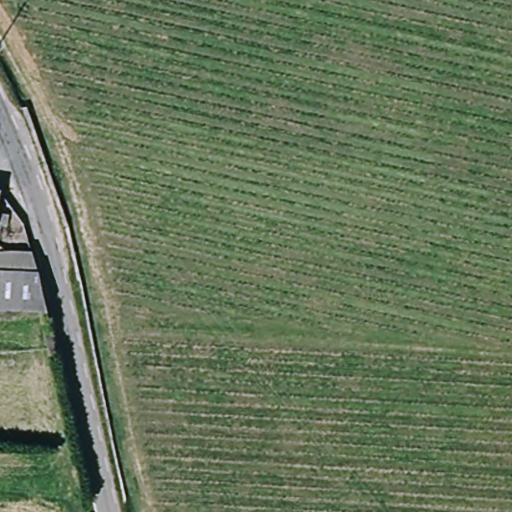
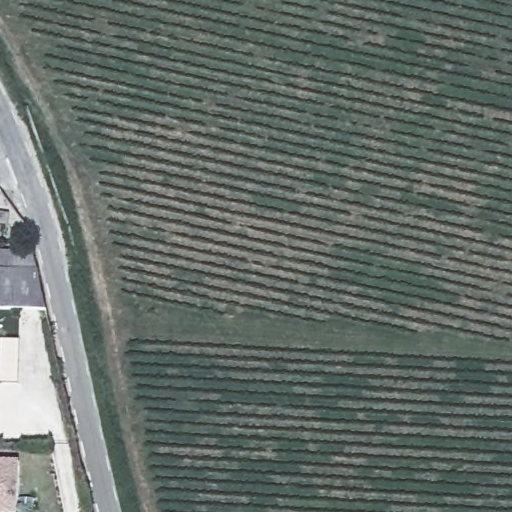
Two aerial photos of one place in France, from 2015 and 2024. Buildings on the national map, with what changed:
unchanged [(0,197),(3,198),(0,217),(0,197)]
unchanged [(37,271),(46,312),(0,309),(0,250),(30,252),(37,271)]
new [(0,384),(0,352),(1,340),(21,341),(18,385),(0,384)]
new [(9,512),(0,512),(0,462),(11,462),(9,512)]

